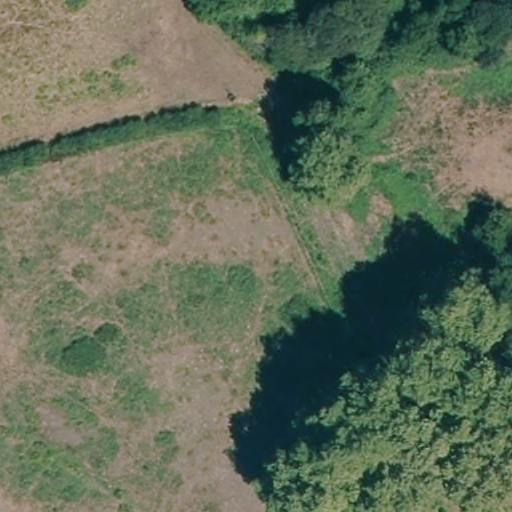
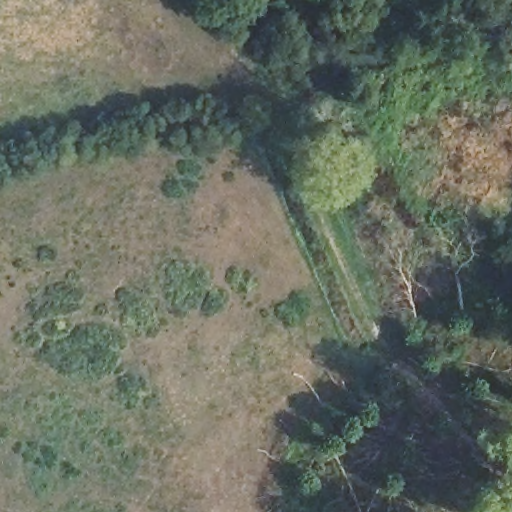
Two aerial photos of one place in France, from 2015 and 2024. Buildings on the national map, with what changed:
[]

